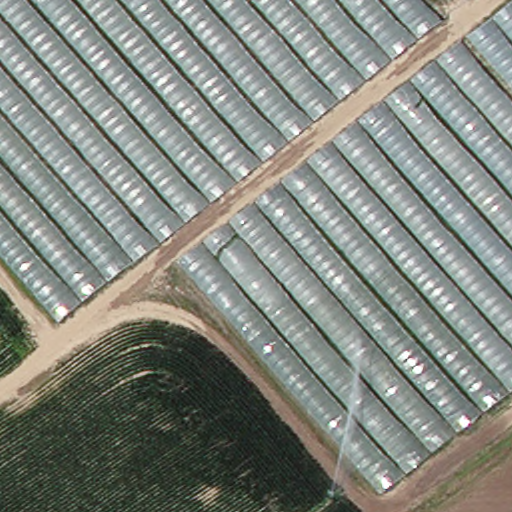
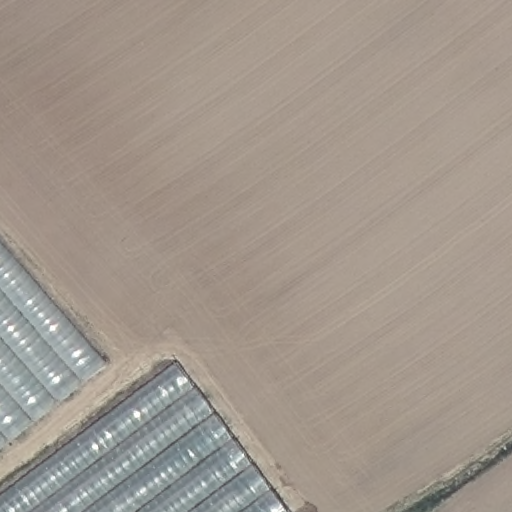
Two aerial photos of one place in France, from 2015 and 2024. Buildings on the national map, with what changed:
demolished [(63,324),(0,251),(0,0),(429,0),(446,21),(63,324)]
demolished [(512,392),(382,493),(180,260),(465,39),(512,93),(512,392)]
new [(107,364),(0,448),(0,242),(107,364)]
demolished [(351,512),(0,512),(0,452),(186,312),(351,512)]
new [(177,363),(288,512),(0,512),(0,497),(177,363)]

